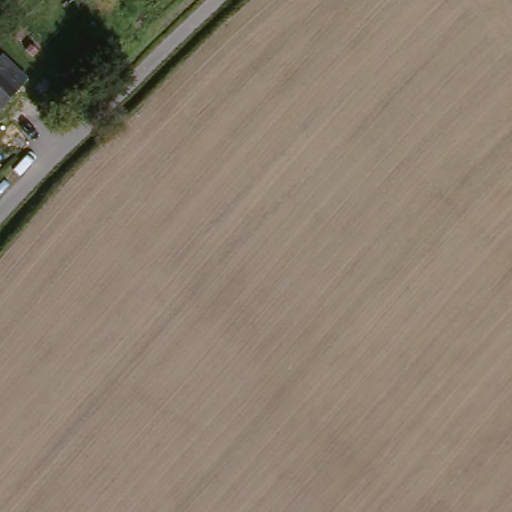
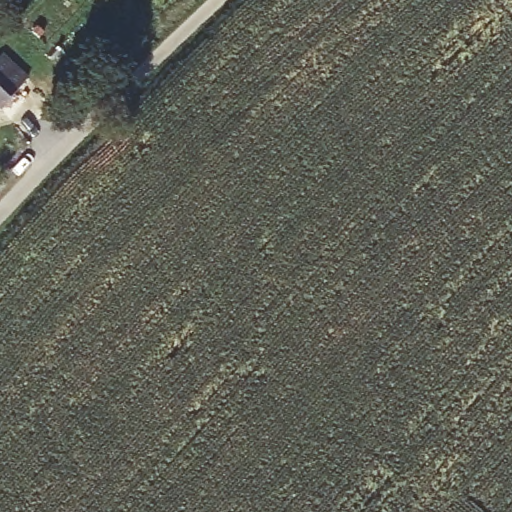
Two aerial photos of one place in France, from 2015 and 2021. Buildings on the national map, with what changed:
unchanged [(17,89),(2,108),(0,107),(0,76),(17,89)]

